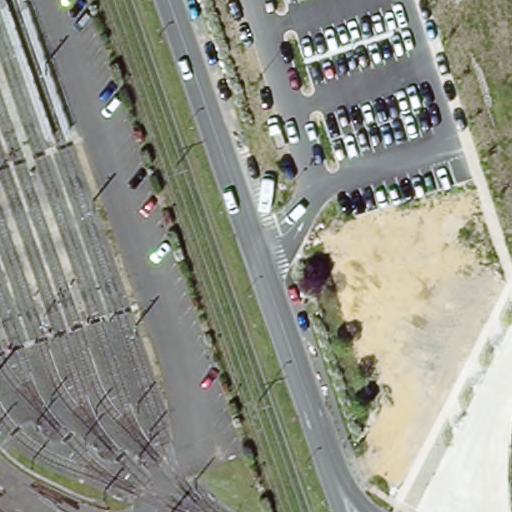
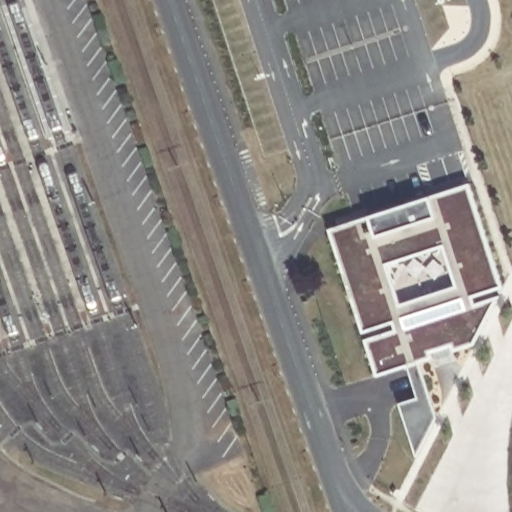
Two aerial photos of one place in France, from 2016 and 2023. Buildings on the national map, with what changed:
demolished [(230,21),(223,0),(288,0),(230,21)]
demolished [(477,172),(508,189),(503,198),(512,203),(512,321),(505,317),(500,325),(512,331),(512,334),(502,352),(490,346),(468,387),(438,371),(443,361),(434,356),(460,305),(441,296),(430,315),(410,304),(403,316),(373,301),(389,270),(359,254),(363,246),(351,239),(357,228),(348,223),(370,182),(399,197),(395,206),(435,227),(442,214),(423,205),(442,167),(461,177),(472,182),(477,172)]
new [(473,344),(453,350),(451,345),(428,352),(429,356),(418,361),(437,417),(415,454),(400,405),(416,400),(406,369),(374,378),(327,229),(367,216),(430,197),(470,183),(503,288),(473,344)]

